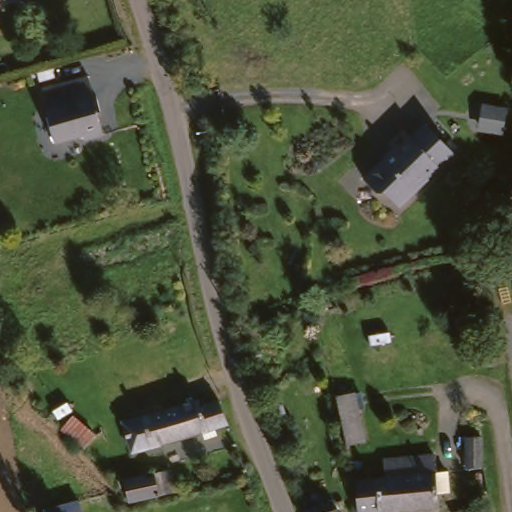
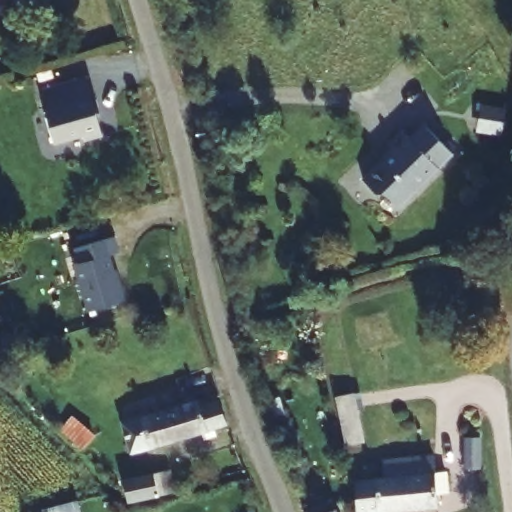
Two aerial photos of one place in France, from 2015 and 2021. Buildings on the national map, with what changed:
unchanged [(97,92),(103,109),(99,110),(106,131),(89,137),(87,132),(59,142),(48,110),(51,109),(44,91),(89,75),(96,94),(97,92)]
unchanged [(404,202),(389,187),(381,187),(368,175),(398,146),(392,140),(407,126),(416,134),(429,120),(449,139),(452,135),(460,142),(456,146),(458,148),(404,202)]
new [(120,252),(111,255),(116,270),(118,269),(127,302),(88,312),(74,265),(79,262),(74,248),(116,236),(120,252)]
unchanged [(129,423),(208,389),(210,393),(225,387),(237,413),(142,452),(129,423)]
unchanged [(347,447),(338,400),(358,396),(368,442),(347,447)]
unchanged [(484,471),(469,471),(469,458),(468,442),(481,442),(483,459),(484,471)]
demolished [(488,460),(488,444),(500,443),(502,461),(503,472),(489,472),(488,460)]
unchanged [(439,507),(439,512),(357,512),(355,482),(385,481),(386,460),(430,462),(441,463),(440,484),(455,486),(454,507),(439,507)]
unchanged [(146,501),(129,507),(126,497),(123,490),(162,476),(169,493),(146,501)]

